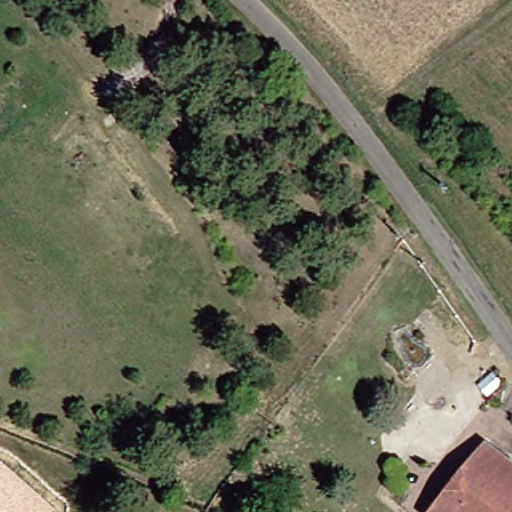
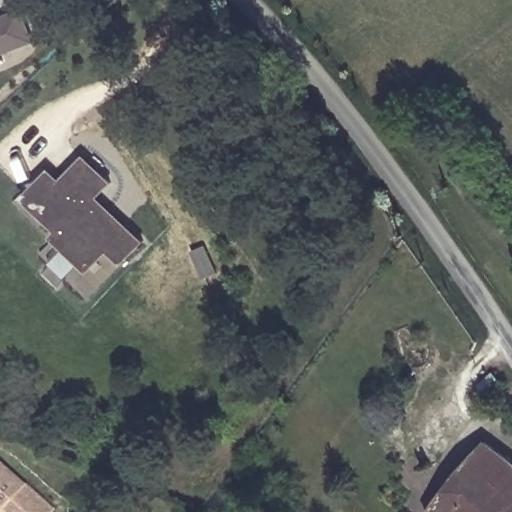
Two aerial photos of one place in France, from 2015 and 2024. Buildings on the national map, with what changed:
new [(29,45),(0,56),(0,22),(17,15),(29,45)]
new [(57,184),(80,160),(106,185),(92,200),(118,225),(138,244),(120,262),(105,248),(86,268),(54,237),(59,232),(34,207),(23,196),(33,187),(46,174),(57,184)]
unchanged [(424,281),(414,300),(397,291),(407,272),(424,281)]
unchanged [(418,512),(476,440),(512,467),(512,512),(418,512)]
unchanged [(55,510),(53,512),(2,512),(0,510),(0,465),(3,461),(55,510)]

